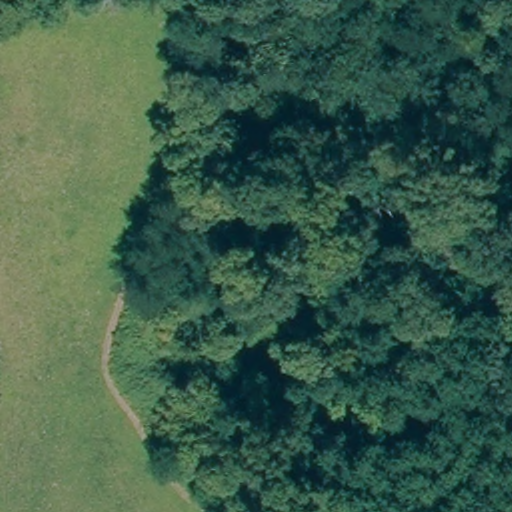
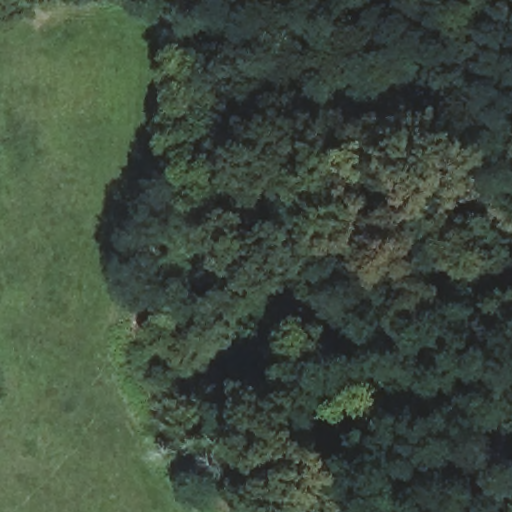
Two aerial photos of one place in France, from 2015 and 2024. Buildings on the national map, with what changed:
[]

